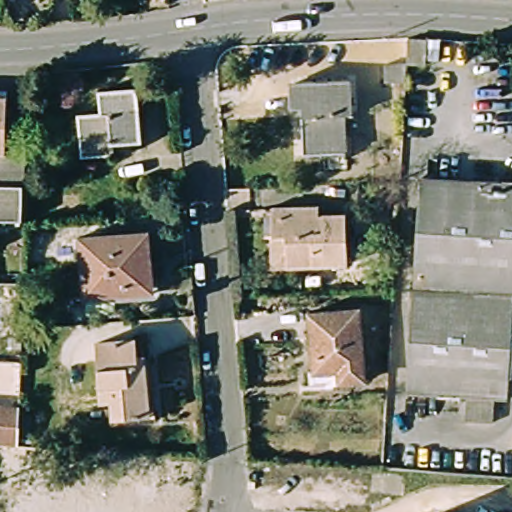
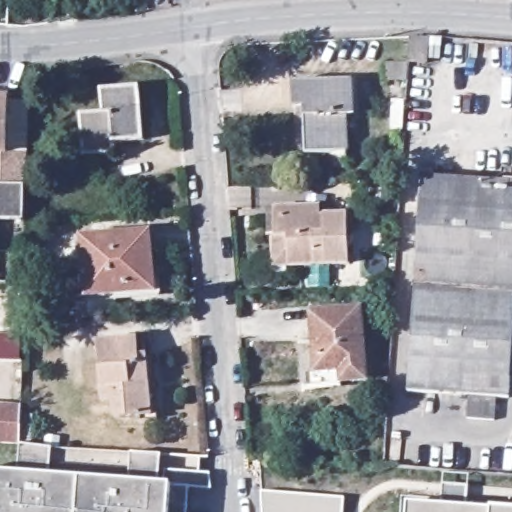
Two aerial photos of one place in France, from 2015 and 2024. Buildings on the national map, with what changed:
unchanged [(380,75),(382,60),(409,63),(411,40),(426,39),(425,68),(409,66),(408,77),(380,75)]
unchanged [(351,80),(352,114),(346,114),(347,153),(303,154),(302,110),(295,110),(295,81),(351,80)]
unchanged [(85,145),(84,114),(106,112),(105,90),(145,87),(147,141),(119,143),(120,154),(102,155),(87,155),(85,145)]
unchanged [(27,186),(0,185),(0,100),(10,100),(9,156),(30,157),(30,186),(27,186)]
unchanged [(511,400),(410,393),(425,184),(512,187),(512,387),(511,400)]
unchanged [(25,223),(0,222),(0,185),(27,186),(25,223)]
unchanged [(278,235),(277,207),(322,206),(323,215),(348,214),(350,261),(290,263),(279,263),(278,235)]
unchanged [(133,293),(90,297),(87,260),(80,260),(79,240),(152,234),(156,284),(157,292),(133,293)]
unchanged [(363,305),(367,348),(368,377),(318,381),(317,365),(322,364),(317,308),(363,305)]
unchanged [(157,417),(142,418),(115,420),(113,402),(104,402),(99,343),(145,340),(147,355),(154,354),(157,417)]
unchanged [(22,445),(0,444),(0,405),(23,405),(22,445)]
new [(169,484),(165,469),(209,473),(210,487),(186,487),(185,512),(0,512),(0,471),(18,472),(18,445),(22,445),(50,447),(50,475),(130,481),(132,453),(160,455),(158,484),(169,484)]
demolished [(56,447),(55,470),(29,468),(30,446),(56,447)]
demolished [(60,475),(92,470),(98,512),(38,512),(66,507),(60,475)]
new [(492,509),(512,510),(512,512),(408,512),(408,505),(439,506),(442,484),(470,486),(470,508),(492,509)]
new [(344,512),(263,512),(262,492),(345,498),(344,512)]
demolished [(25,512),(0,512),(0,511),(25,507),(25,512)]
demolished [(512,509),(512,512),(509,512),(510,508),(512,509)]
demolished [(441,512),(440,512),(440,511),(441,512)]

